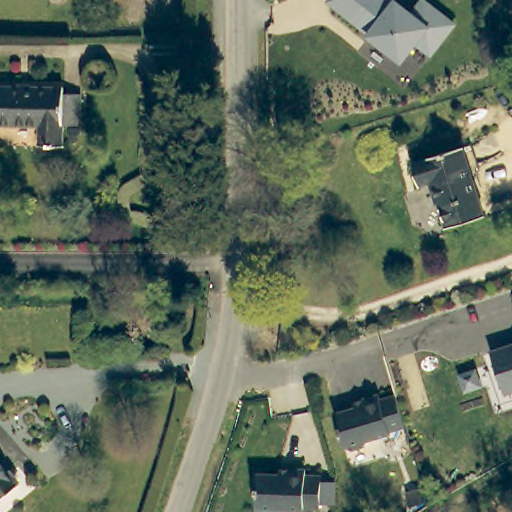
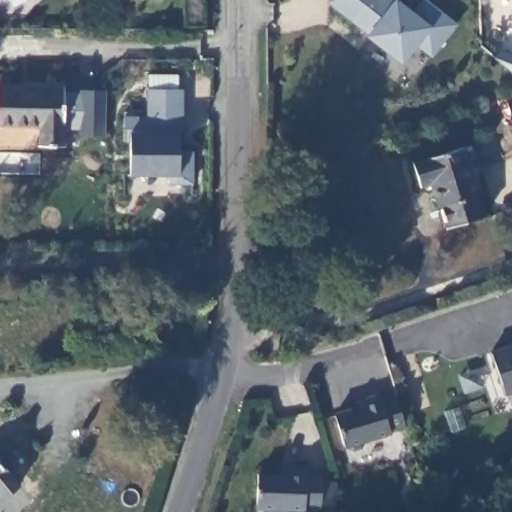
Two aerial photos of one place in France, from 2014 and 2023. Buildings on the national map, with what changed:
unchanged [(378,0),(391,10),(392,8),(409,20),(420,5),(451,30),(428,60),(413,48),(399,66),(367,42),(368,40),(326,9),(332,0),(378,0)]
new [(511,8),(512,4),(512,8),(511,8)]
new [(180,132),(180,150),(196,149),(196,185),(167,184),(165,175),(129,175),(129,142),(121,143),(121,115),(146,115),(146,87),(183,87),(180,132)]
unchanged [(41,149),(41,127),(0,128),(0,90),(64,89),(66,148),(41,149)]
new [(78,94),(77,89),(105,90),(103,137),(78,136),(78,130),(65,130),(64,94),(78,94)]
unchanged [(452,231),(438,184),(424,187),(418,166),(469,150),(489,220),(452,231)]
unchanged [(501,400),(488,356),(512,349),(512,396),(501,400)]
unchanged [(472,375),(477,391),(461,396),(456,380),(472,375)]
unchanged [(403,438),(392,441),(392,445),(368,453),(365,458),(355,462),(347,458),(339,425),(361,420),(360,414),(383,406),(386,411),(395,409),(401,407),(410,436),(403,438)]
unchanged [(301,510),(301,512),(287,512),(255,512),(256,508),(253,508),(255,475),(286,476),(286,470),(303,471),(303,477),(319,477),(318,483),(333,484),(332,506),(317,506),(317,511),(301,510)]
unchanged [(0,503),(0,471),(16,490),(0,503)]

